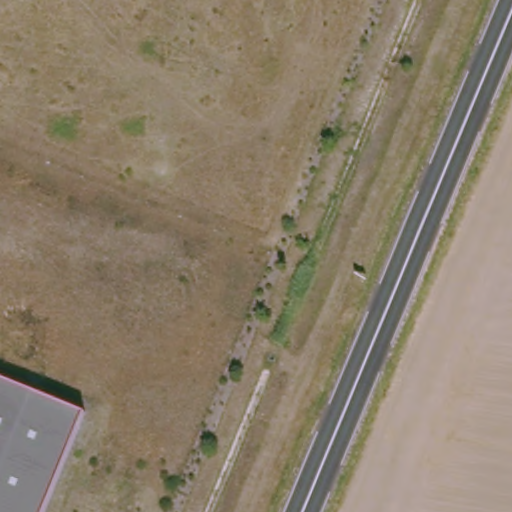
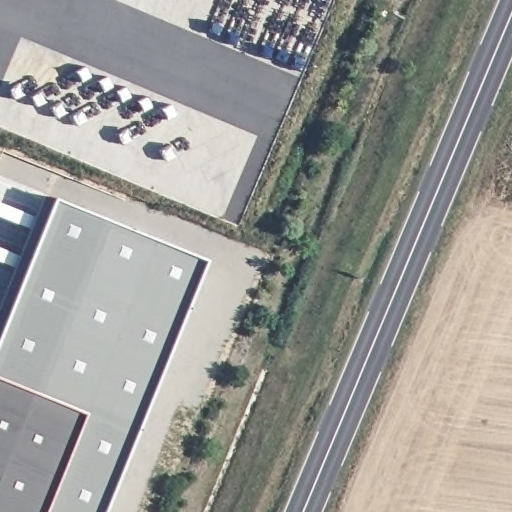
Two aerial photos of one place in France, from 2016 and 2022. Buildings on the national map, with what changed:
new [(53,196),(210,260),(110,512),(46,512),(87,414),(0,376),(0,309),(53,196)]
unchanged [(87,414),(46,512),(0,512),(0,376),(87,414)]

